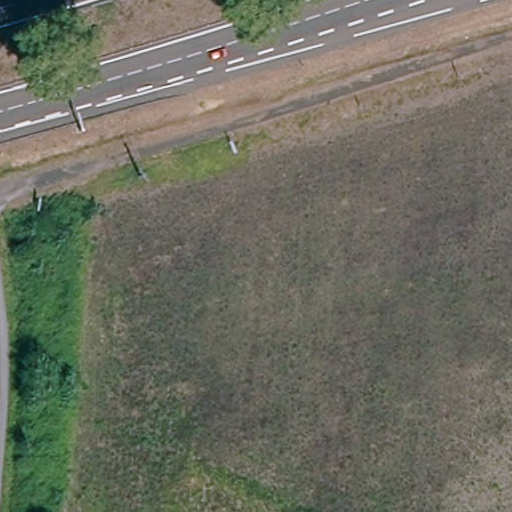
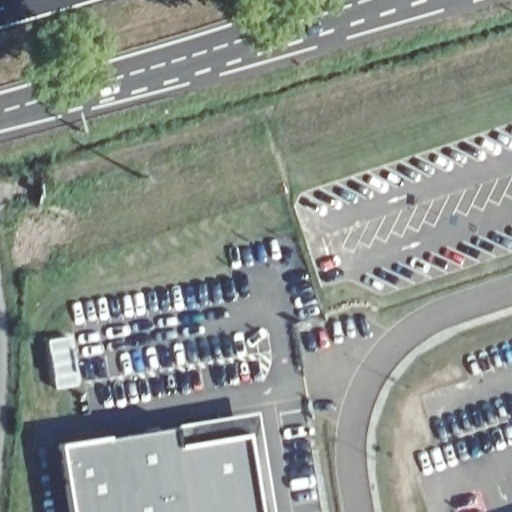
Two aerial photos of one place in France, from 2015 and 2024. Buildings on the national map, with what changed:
new [(110,437),(175,426),(256,413),(272,512),(71,512),(60,446),(110,437)]

